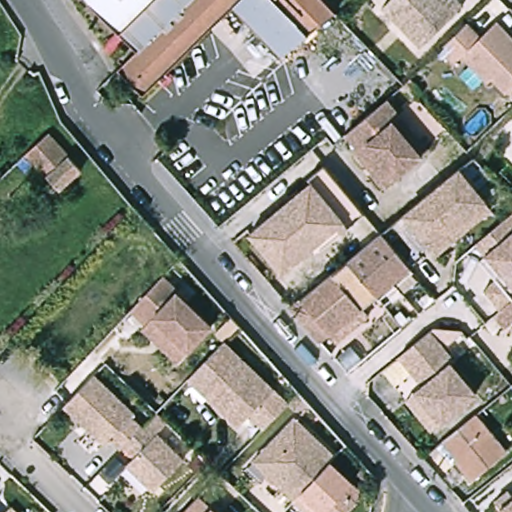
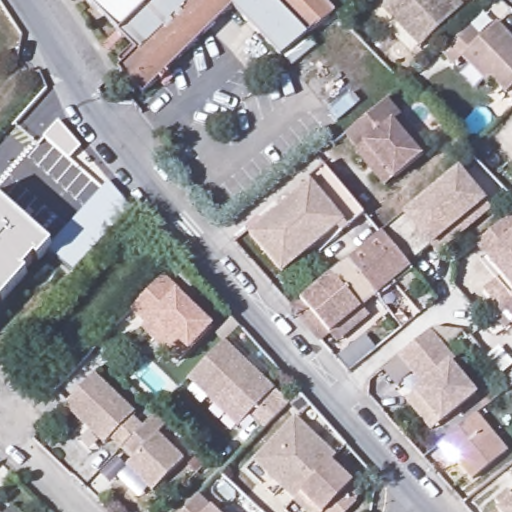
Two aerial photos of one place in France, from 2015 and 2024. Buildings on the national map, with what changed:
unchanged [(86,0),(192,0),(138,54),(86,0)]
unchanged [(286,55),(239,7),(146,97),(121,70),(138,54),(192,0),(322,0),(335,13),(286,55)]
unchanged [(447,0),(458,0),(464,6),(421,47),(382,7),(389,0),(447,0)]
unchanged [(449,50),(471,29),(472,29),(485,44),(502,27),(512,37),(512,97),(512,98),(498,83),(493,87),(468,61),(459,69),(445,54),(449,50)]
unchanged [(362,158),(365,155),(352,141),(392,105),(435,154),(401,184),(392,192),(362,158)]
unchanged [(81,174),(60,194),(25,158),(46,137),(81,174)]
unchanged [(304,190),(300,187),(316,173),(359,221),(343,235),(338,229),(278,283),(244,244),(304,190)]
unchanged [(495,209),(441,257),(411,222),(465,174),(495,209)]
new [(35,258),(24,270),(28,274),(2,303),(0,301),(0,199),(53,247),(39,261),(35,258)]
unchanged [(512,238),(512,294),(499,279),(474,251),(485,242),(502,227),(512,238)]
unchanged [(323,349),(293,315),(383,238),(412,273),(323,349)]
unchanged [(162,346),(169,338),(172,334),(154,318),(147,325),(131,310),(142,299),(164,276),(180,291),(178,293),(213,326),(186,354),(179,362),(162,346)]
unchanged [(505,332),(496,322),(500,318),(482,295),(488,289),(491,287),(492,287),(511,309),(512,308),(512,325),(505,332)]
unchanged [(409,401),(418,393),(426,387),(404,361),(426,342),(429,339),(476,397),(444,424),(435,432),(409,401)]
unchanged [(275,394),(251,419),(226,396),(215,408),(190,384),(209,363),(225,347),(275,394)]
unchanged [(124,449),(123,450),(111,439),(106,444),(65,407),(69,403),(95,375),(136,413),(132,417),(144,428),(125,447),(124,449)]
unchanged [(477,413),(510,456),(469,487),(452,465),(459,459),(445,439),(477,413)]
unchanged [(128,466),(136,458),(125,447),(144,428),(148,423),(186,459),(155,492),(128,466)]
unchanged [(337,468),(308,499),(301,505),(260,467),(301,424),(342,462),(337,468)]
unchanged [(337,468),(359,488),(336,512),(322,512),(308,499),(337,468)]
unchanged [(512,502),(512,512),(498,512),(493,506),(506,496),(512,502)]
unchanged [(216,512),(187,512),(200,498),(216,512)]

